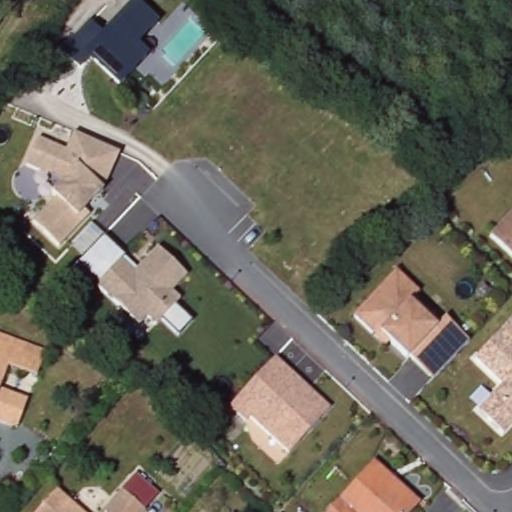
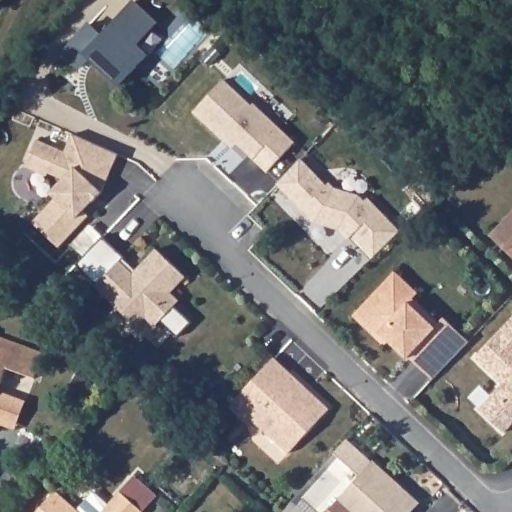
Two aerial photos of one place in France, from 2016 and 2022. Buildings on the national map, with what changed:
unchanged [(138,45),(150,55),(120,87),(89,59),(79,69),(60,52),(87,21),(102,34),(133,0),(159,24),(138,45)]
new [(225,141),(194,112),(225,79),(253,105),(255,103),(296,142),(267,172),(238,143),(233,148),(225,141)]
unchanged [(120,156),(103,193),(90,217),(60,246),(36,223),(60,197),(54,190),(66,180),(28,172),(38,140),(68,152),(74,135),(120,156)]
new [(375,255),(368,248),(355,236),(351,241),(341,231),(316,225),(303,212),(277,187),(300,164),(327,190),(329,187),(335,192),(360,199),(365,204),(369,201),(392,223),(401,231),(375,255)]
unchanged [(494,235),(512,217),(512,255),(494,235)]
unchanged [(172,293),(181,301),(175,307),(190,322),(178,335),(162,320),(156,327),(147,318),(138,326),(96,287),(98,285),(78,265),(84,258),(71,245),(90,225),(104,239),(137,270),(157,249),(186,277),(172,293)]
unchanged [(420,293),(411,302),(436,324),(445,317),(472,342),(435,379),(408,358),(392,340),(388,347),(360,317),(398,273),(420,293)]
unchanged [(508,434),(479,408),(504,381),(477,358),(512,320),(512,430),(508,434)]
unchanged [(36,379),(7,368),(0,388),(0,336),(45,352),(36,379)]
unchanged [(332,409),(289,454),(237,402),(277,359),(332,409)]
unchanged [(17,430),(0,425),(0,391),(27,401),(17,430)]
unchanged [(375,460),(418,500),(408,512),(330,512),(375,460)]
unchanged [(121,495),(140,512),(107,512),(121,495)]
unchanged [(56,496),(75,512),(42,512),(56,496)]

